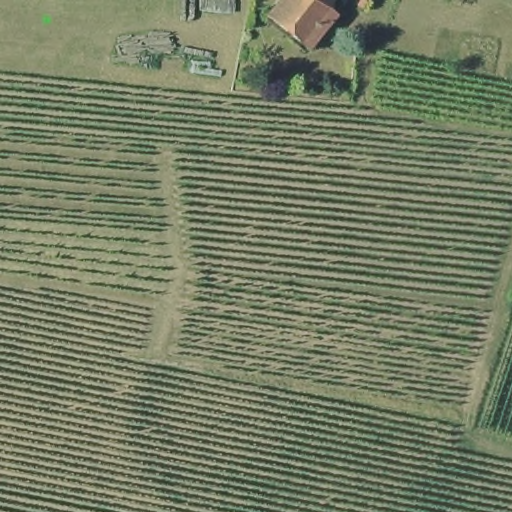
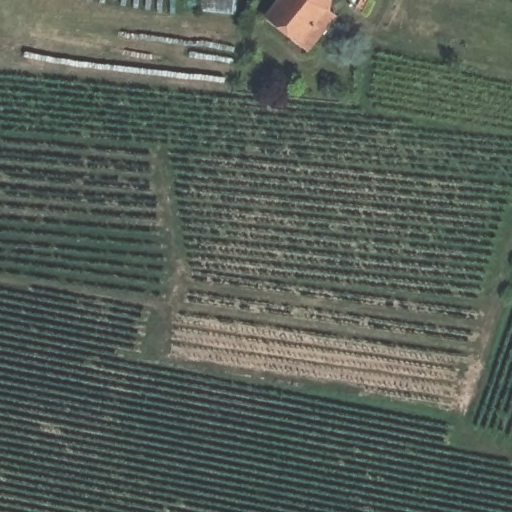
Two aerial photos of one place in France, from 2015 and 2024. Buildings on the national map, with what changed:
unchanged [(290,0),(335,0),(333,15),(339,20),(340,21),(329,35),(318,48),(313,54),(306,47),(272,21),(290,0)]

